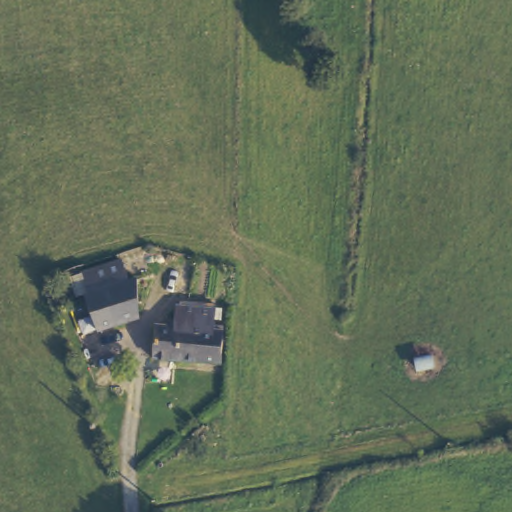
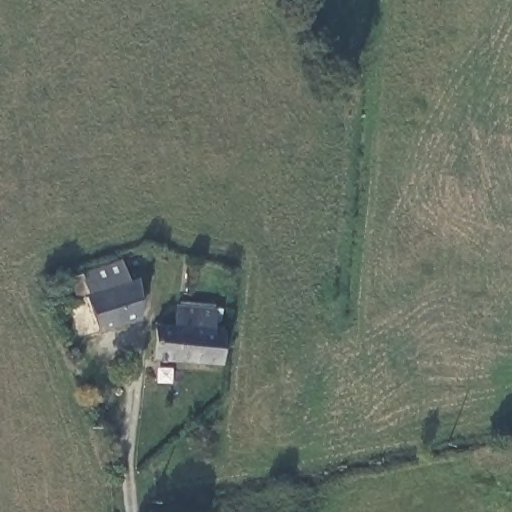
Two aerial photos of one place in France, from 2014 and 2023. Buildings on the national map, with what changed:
unchanged [(129,282),(135,281),(137,317),(100,328),(84,275),(122,261),(129,282)]
unchanged [(215,309),(214,330),(224,331),(221,364),(155,359),(157,326),(176,326),(177,307),(215,309)]

